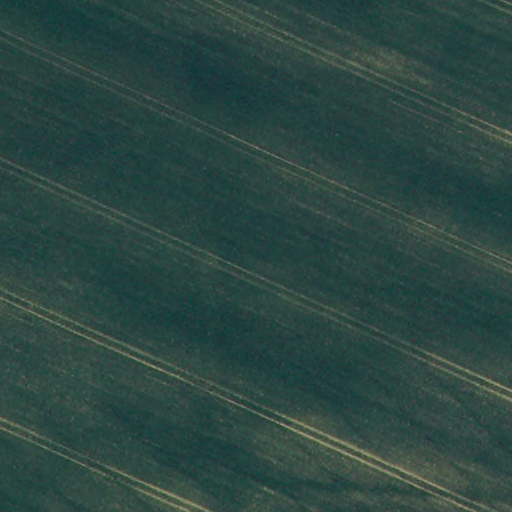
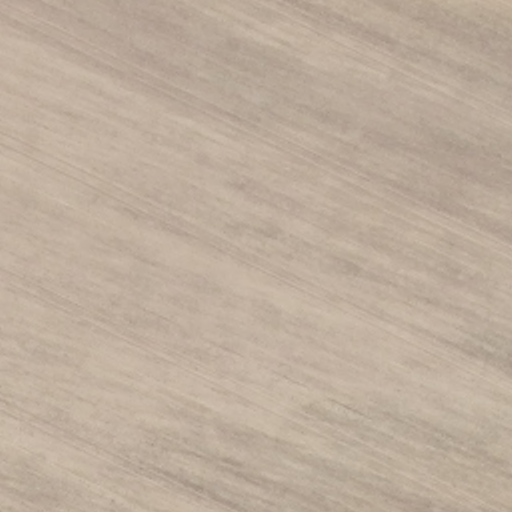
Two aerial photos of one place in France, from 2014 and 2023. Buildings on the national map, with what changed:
[]

